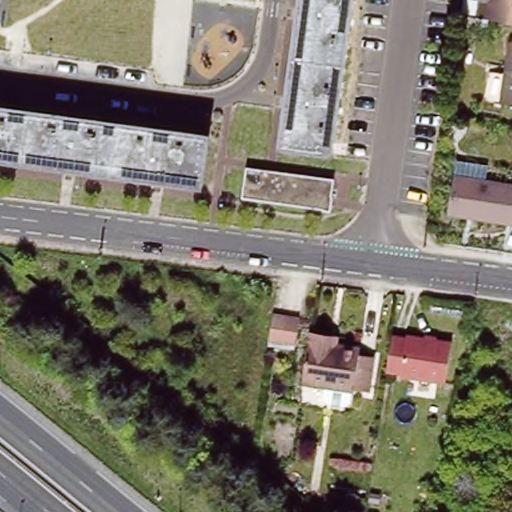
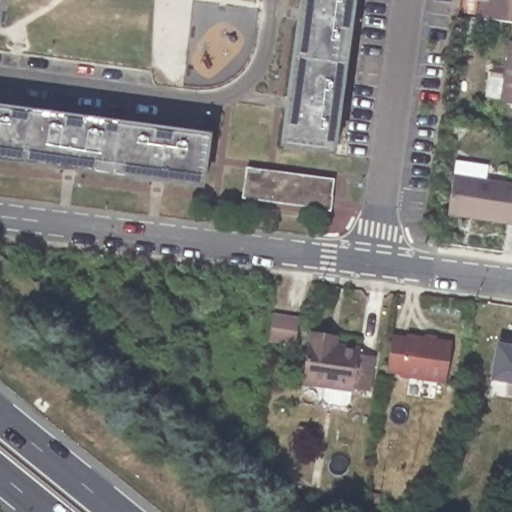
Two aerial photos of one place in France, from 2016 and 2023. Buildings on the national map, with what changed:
unchanged [(285,146),(303,0),(353,0),(332,155),(285,146)]
unchanged [(494,0),(512,0),(512,11),(493,9),(494,0)]
unchanged [(512,104),(500,102),(508,43),(512,43),(512,104)]
unchanged [(180,131),(182,118),(219,122),(216,145),(206,143),(203,165),(200,186),(70,170),(0,161),(0,109),(180,131)]
unchanged [(512,221),(451,212),(460,160),(491,165),(489,180),(512,184),(512,221)]
unchanged [(330,179),(327,207),(241,197),(245,169),(330,179)]
unchanged [(304,319),(300,345),(273,341),(277,315),(304,319)]
unchanged [(353,387),(353,389),(332,386),(301,381),(310,332),(310,325),(337,330),(335,339),(341,340),(360,344),(360,352),(373,354),(368,390),(353,387)]
unchanged [(446,340),(441,380),(396,373),(396,370),(381,368),(386,334),(402,336),(402,334),(446,340)]
new [(495,343),(512,346),(512,387),(488,383),(495,343)]

